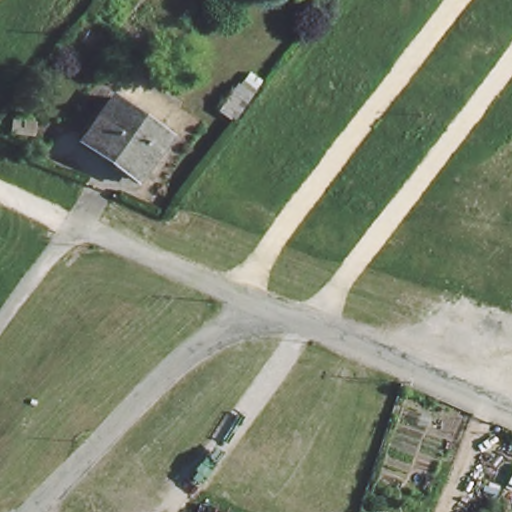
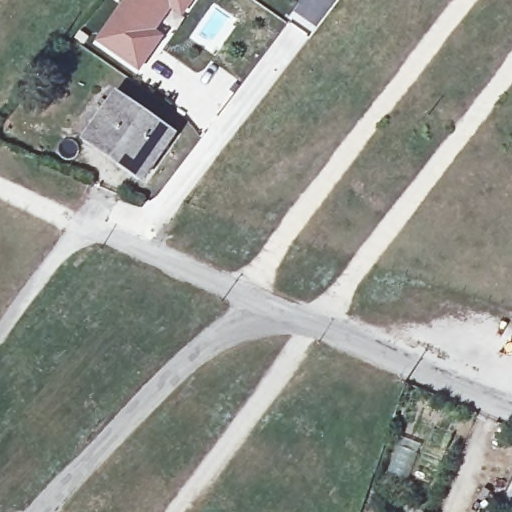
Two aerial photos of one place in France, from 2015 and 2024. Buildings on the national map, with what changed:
new [(152,51),(140,69),(100,41),(129,0),(192,0),(182,14),(171,6),(153,33),(161,39),(152,51)]
demolished [(252,85),(266,95),(247,121),(232,110),(252,85)]
unchanged [(116,101),(117,99),(139,114),(140,115),(174,139),(149,174),(112,149),(107,155),(87,142),(116,101)]

